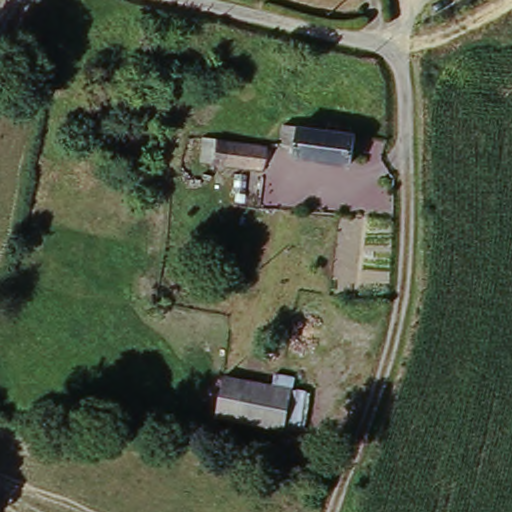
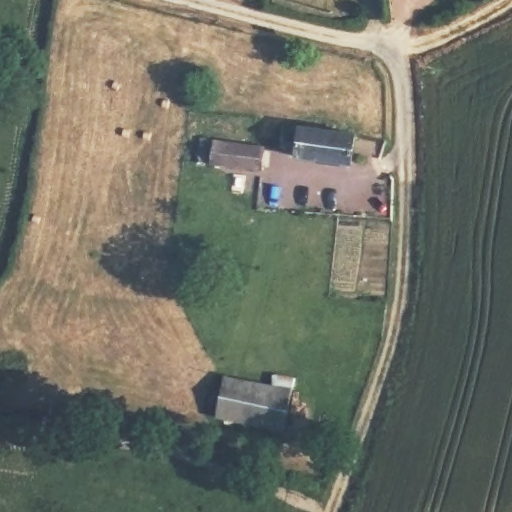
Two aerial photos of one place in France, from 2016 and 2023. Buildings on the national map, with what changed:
unchanged [(355,135),(352,164),(297,155),(298,147),(281,145),(285,125),(355,135)]
unchanged [(260,149),(256,170),(195,161),(199,139),(260,149)]
unchanged [(293,386),(285,426),(217,411),(225,372),(293,386)]

